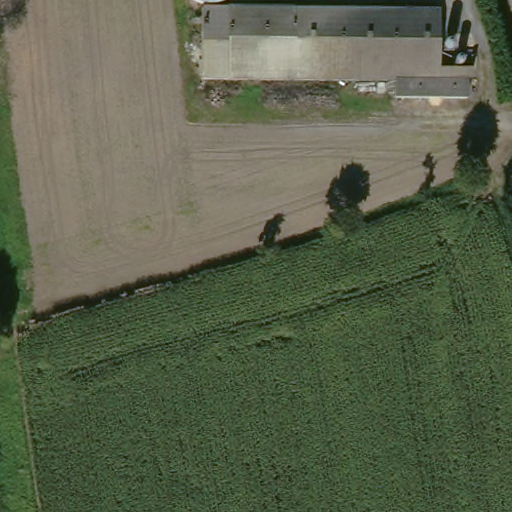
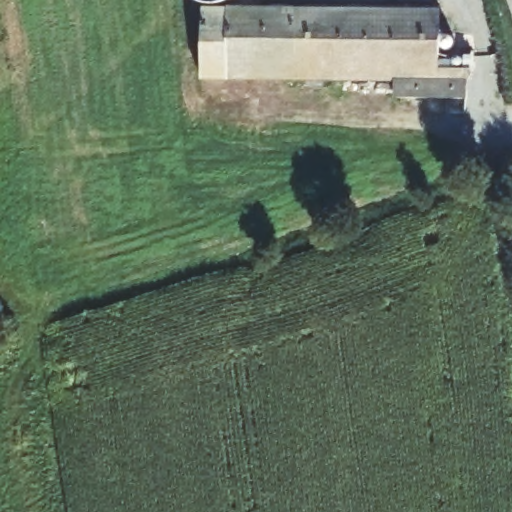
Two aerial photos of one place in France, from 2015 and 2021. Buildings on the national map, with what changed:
unchanged [(448,9),(447,65),(480,66),(480,85),(469,84),(404,77),(405,80),(210,66),(214,0),(311,0),(448,9)]
unchanged [(404,77),(469,84),(469,104),(402,100),(405,80),(404,77)]

